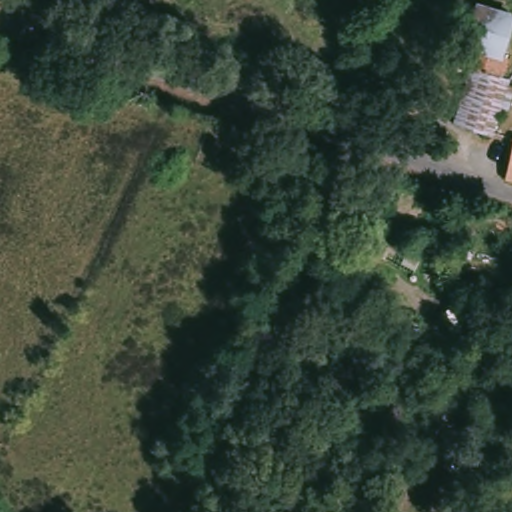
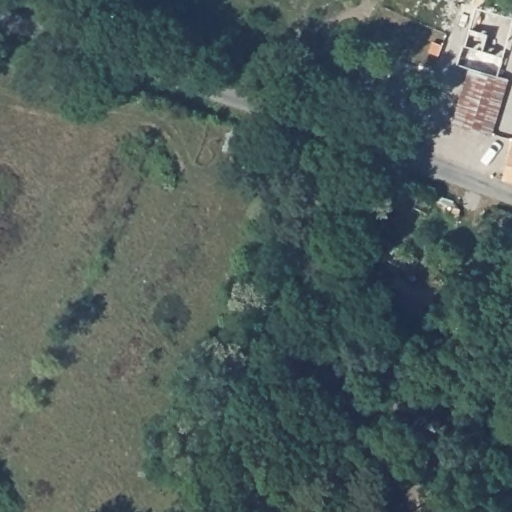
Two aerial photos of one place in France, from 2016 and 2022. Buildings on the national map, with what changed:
unchanged [(512,13),(512,58),(501,55),(475,48),(486,6),(512,13)]
unchanged [(501,55),(496,76),(507,80),(491,137),(456,128),(475,48),(501,55)]
unchanged [(508,135),(512,136),(512,176),(498,172),(508,135)]
unchanged [(459,226),(445,261),(425,253),(437,218),(459,226)]

